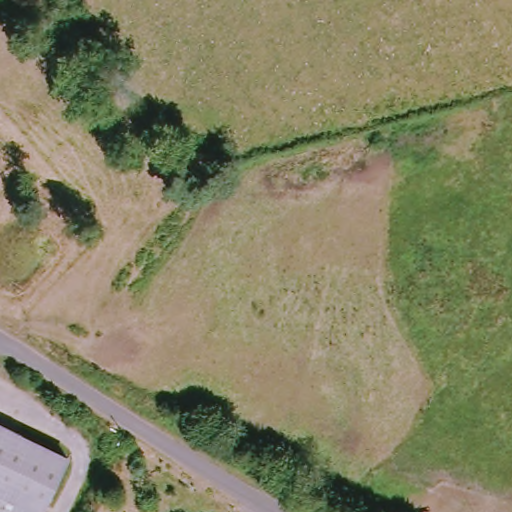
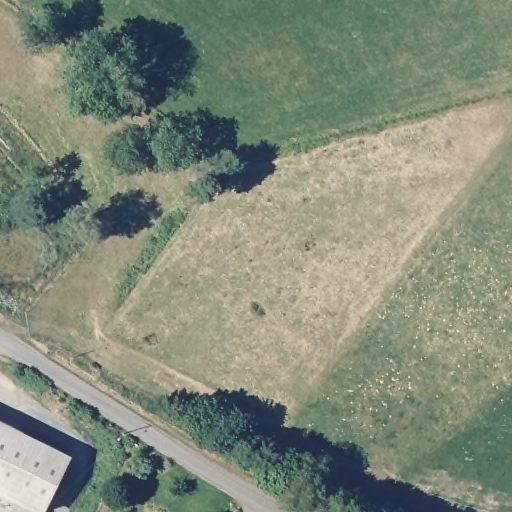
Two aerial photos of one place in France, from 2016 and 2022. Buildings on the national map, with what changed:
unchanged [(66,458),(42,510),(41,512),(0,512),(0,424),(66,458)]

